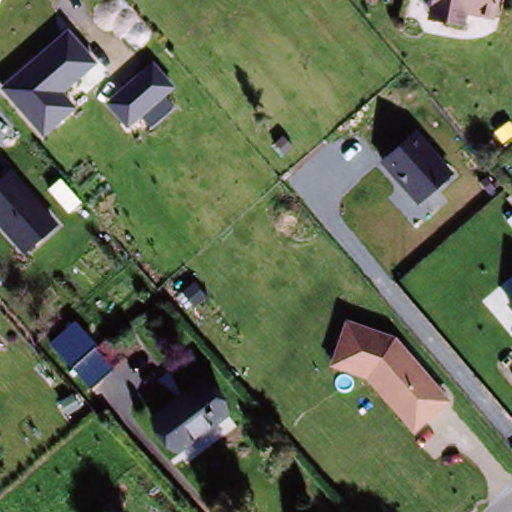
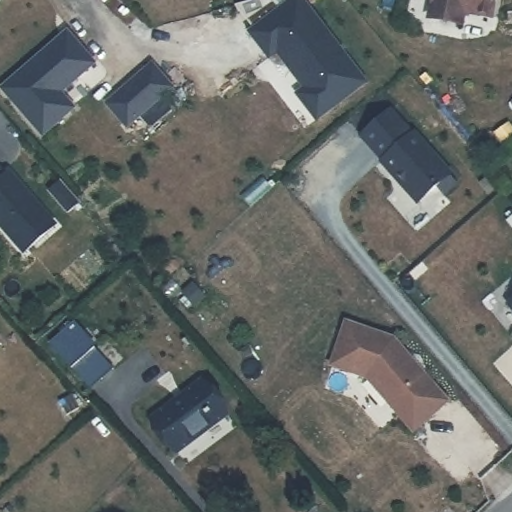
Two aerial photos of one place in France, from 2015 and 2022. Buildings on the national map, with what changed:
new [(266,52),(247,30),(283,0),(301,0),(363,75),(316,113),(297,90),(305,83),(275,46),(266,52)]
unchanged [(489,16),(460,10),(456,29),(426,22),(432,0),(492,0),(489,16)]
unchanged [(63,93),(76,109),(42,139),(0,91),(0,90),(67,31),(96,64),(63,93)]
unchanged [(174,86),(128,130),(106,105),(152,63),(174,86)]
unchanged [(393,107),(451,175),(418,205),(360,136),(393,107)]
unchanged [(24,255),(0,227),(0,182),(11,172),(59,225),(24,255)]
unchanged [(506,308),(512,303),(512,315),(506,308)]
unchanged [(395,338),(450,403),(413,435),(366,380),(329,368),(345,320),(395,338)]
unchanged [(48,355),(57,347),(79,325),(116,362),(95,385),(86,392),(48,355)]
unchanged [(0,346),(0,335),(6,340),(0,346)]
unchanged [(198,371),(223,398),(179,441),(153,413),(198,371)]

